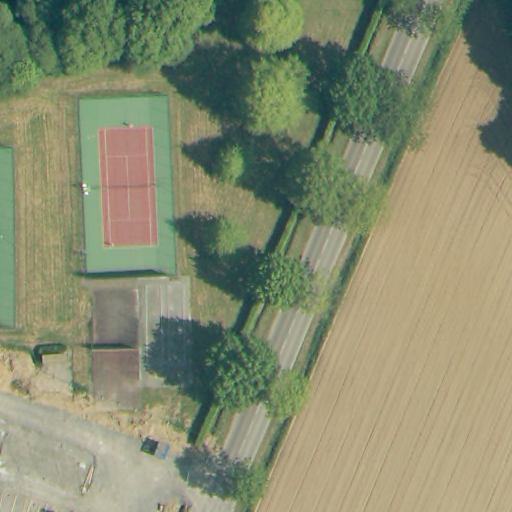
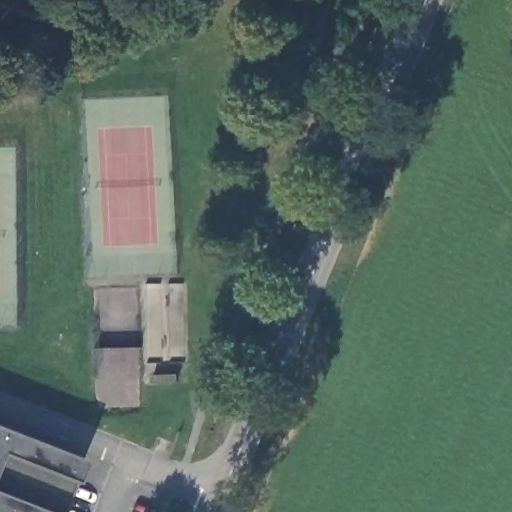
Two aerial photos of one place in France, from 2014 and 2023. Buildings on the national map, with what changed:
new [(60,512),(0,512),(0,430),(80,461),(60,512)]

